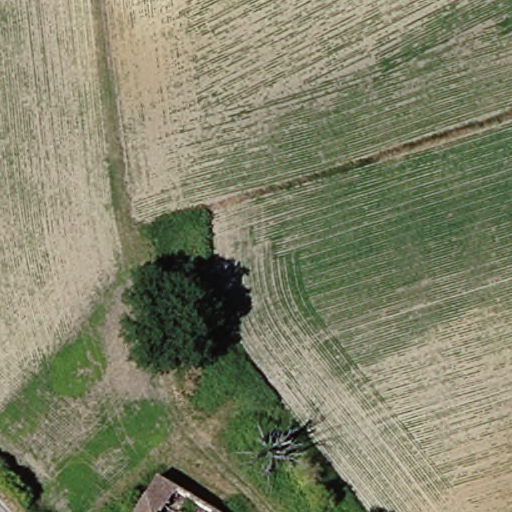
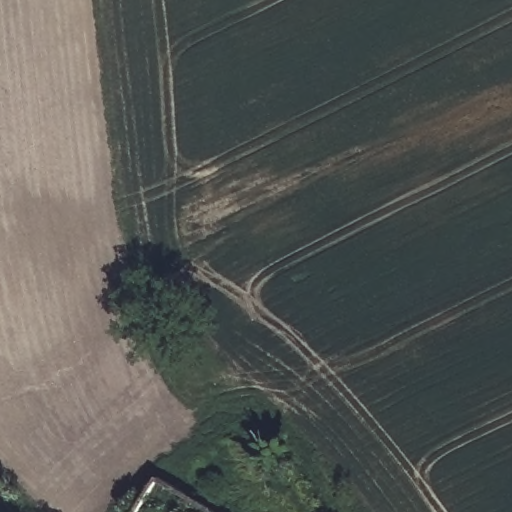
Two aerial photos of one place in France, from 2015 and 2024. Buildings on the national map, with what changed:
unchanged [(136,512),(156,481),(205,512),(136,512)]

